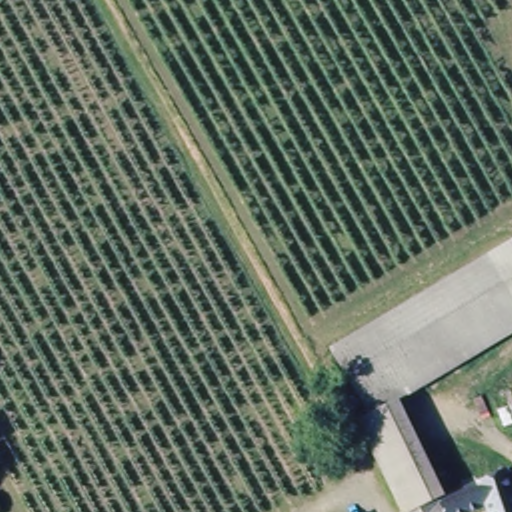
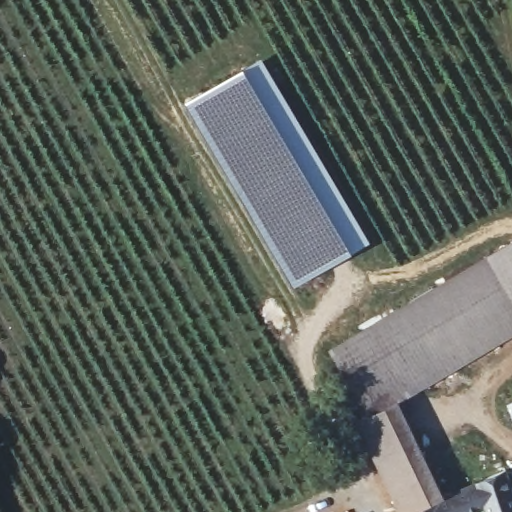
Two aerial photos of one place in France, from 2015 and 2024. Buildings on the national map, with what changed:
new [(262,56),(371,241),(293,285),(223,174),(185,102),(262,56)]
new [(489,262),(512,248),(512,302),(489,262)]
unchanged [(333,351),(399,313),(489,262),(512,302),(512,319),(364,404),(343,368),(333,351)]
unchanged [(398,400),(386,407),(371,416),(364,404),(512,319),(512,336),(398,400)]
unchanged [(486,510),(480,512),(396,512),(389,497),(355,424),(371,416),(386,407),(398,400),(434,477),(444,500),(512,471),(512,512),(486,512),(486,510)]

